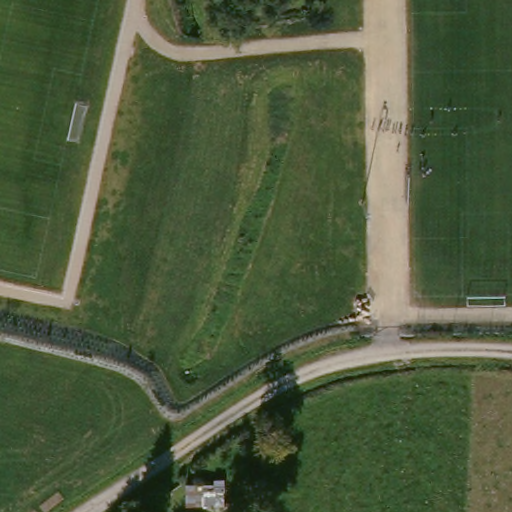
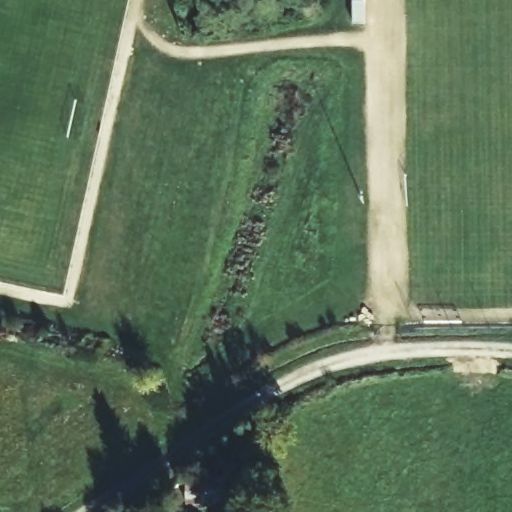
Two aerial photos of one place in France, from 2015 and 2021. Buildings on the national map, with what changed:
unchanged [(177,479),(223,477),(222,501),(190,500),(189,508),(178,509),(177,479)]

